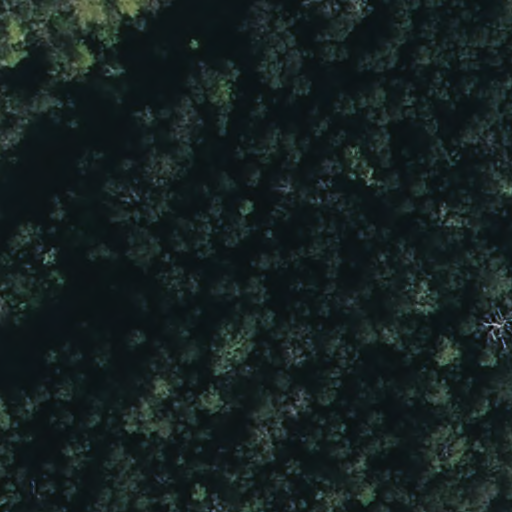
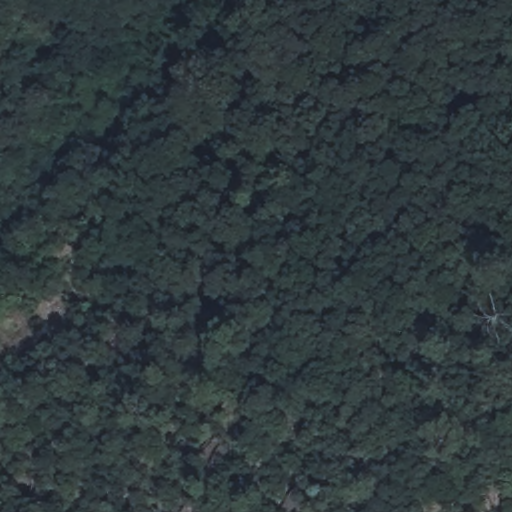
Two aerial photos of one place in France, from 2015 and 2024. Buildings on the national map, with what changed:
unchanged [(56,292),(72,306),(53,325),(37,310),(56,292)]

